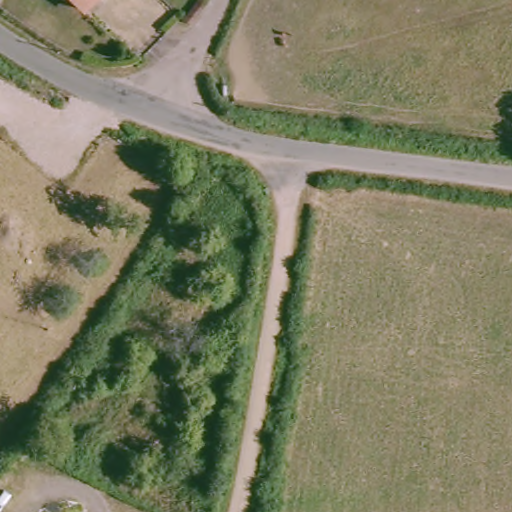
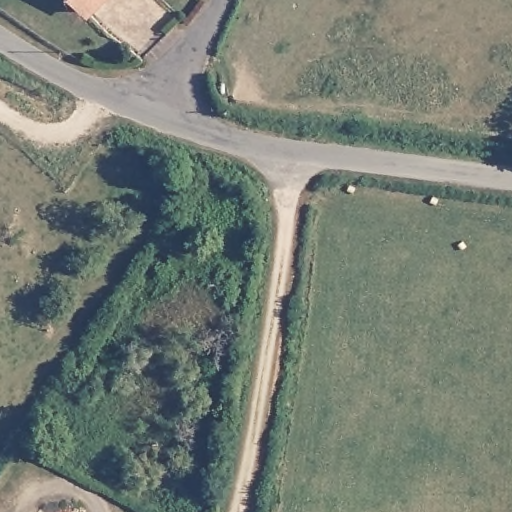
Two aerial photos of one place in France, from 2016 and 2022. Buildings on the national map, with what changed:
unchanged [(73,0),(98,0),(85,12),(73,0)]

